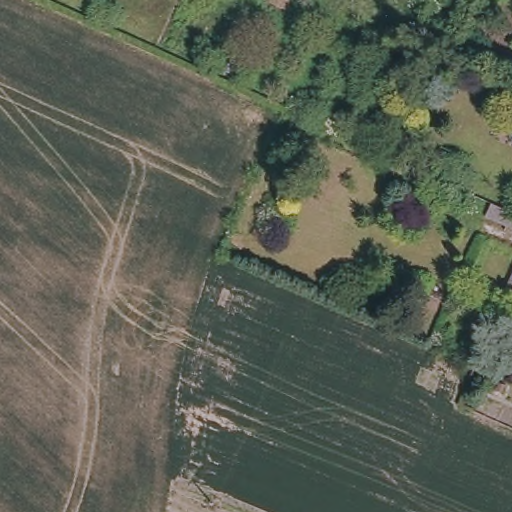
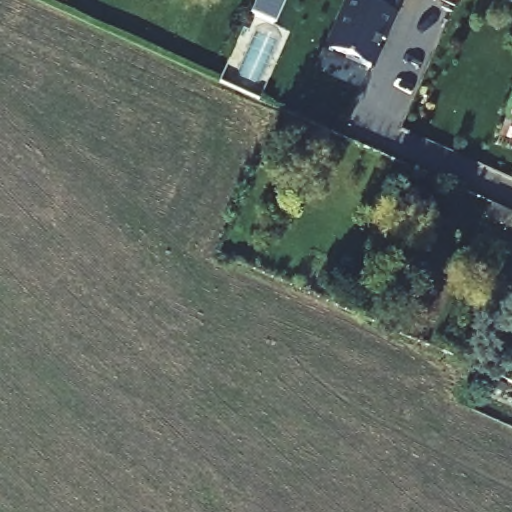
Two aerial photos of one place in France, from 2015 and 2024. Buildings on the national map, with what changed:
new [(275,24),(250,13),(256,0),(286,0),(275,24)]
new [(397,12),(373,65),(325,45),(343,0),(370,0),(397,12)]

